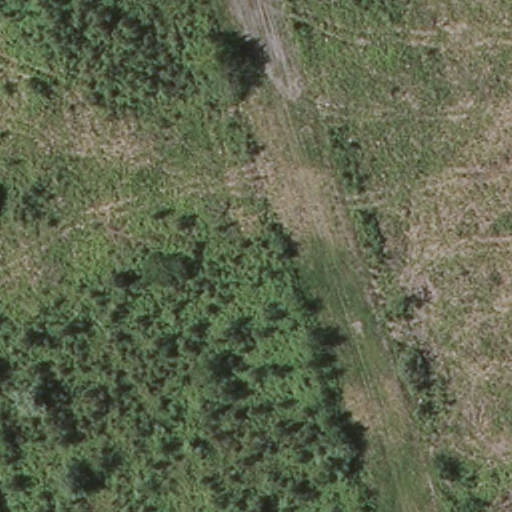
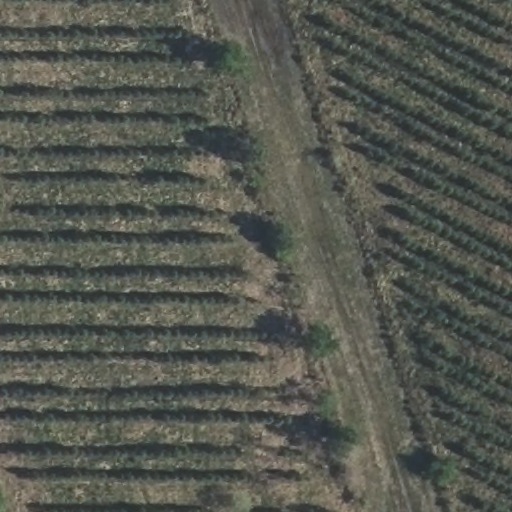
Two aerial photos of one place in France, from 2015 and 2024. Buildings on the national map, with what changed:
[]

